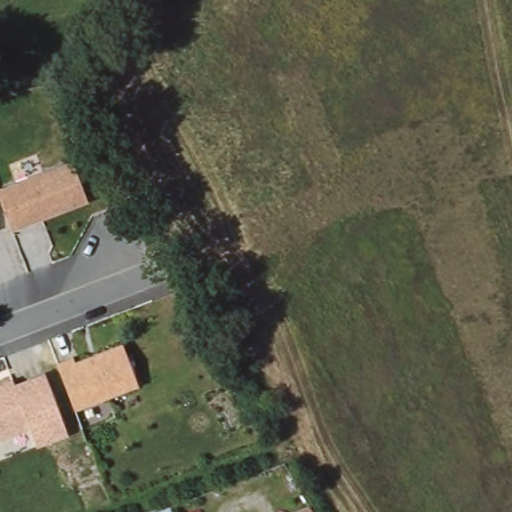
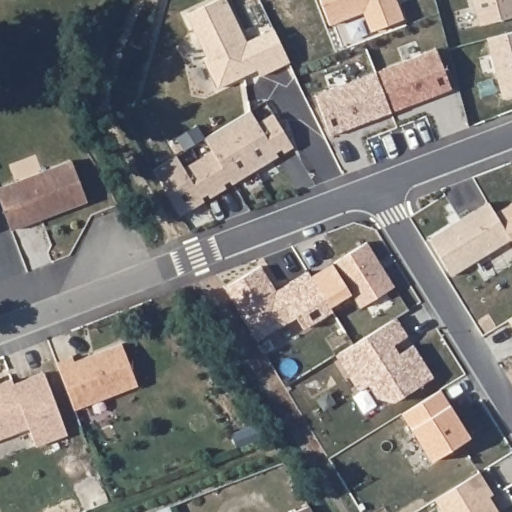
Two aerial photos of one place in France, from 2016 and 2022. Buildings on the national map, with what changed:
new [(217,89),(203,59),(206,57),(186,15),(218,0),(225,0),(246,42),(273,30),(289,62),(260,76),(257,70),(243,76),(217,89)]
new [(472,0),(512,0),(512,17),(479,26),(472,0)]
new [(512,96),(502,99),(487,39),(512,32),(512,96)]
new [(436,50),(451,89),(391,112),(375,73),(436,50)]
new [(375,73),(391,112),(330,136),(315,96),(375,73)]
new [(278,156),(255,170),(227,125),(250,111),(258,124),(273,114),(293,147),(284,152),(282,149),(275,152),(278,156)]
new [(225,188),(218,193),(198,160),(212,151),(204,139),(227,125),(255,170),(232,185),(229,180),(223,185),(225,188)]
new [(203,202),(180,216),(152,170),(176,156),(183,169),(198,160),(218,193),(210,197),(207,194),(201,198),(203,202)]
unchanged [(73,162),(89,201),(16,226),(2,190),(73,162)]
new [(488,203),(495,215),(511,240),(451,276),(428,240),(488,203)]
new [(512,242),(511,240),(495,215),(512,204),(512,242)]
new [(366,242),(394,287),(359,308),(332,264),(366,242)]
new [(276,292),(290,283),(308,272),(332,311),(303,330),(296,318),(257,342),(224,289),(260,266),(276,292)]
new [(396,318),(407,337),(393,345),(399,355),(413,346),(433,378),(393,402),(376,398),(368,385),(358,391),(336,356),(396,318)]
new [(512,327),(508,320),(512,318),(512,327)]
unchanged [(74,357),(77,362),(125,345),(139,388),(79,407),(60,361),(74,357)]
unchanged [(11,377),(13,380),(44,370),(66,431),(36,441),(30,425),(0,435),(0,381),(11,377)]
new [(450,406),(454,413),(469,438),(431,462),(402,415),(440,391),(450,406)]
new [(493,495),(489,496),(498,512),(442,512),(435,500),(479,472),(493,495)]
unchanged [(306,509),(307,512),(298,512),(306,509)]

